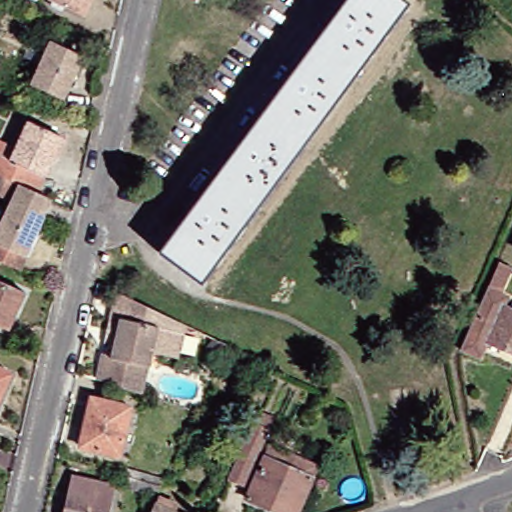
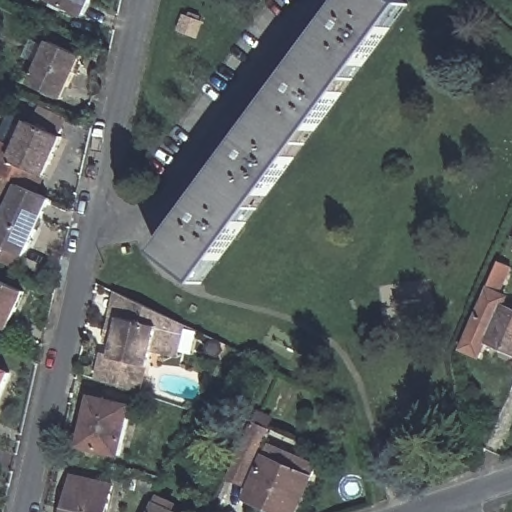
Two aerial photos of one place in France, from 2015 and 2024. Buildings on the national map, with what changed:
unchanged [(79,12),(53,0),(85,0),(79,12)]
unchanged [(186,278),(145,248),(328,0),(392,0),(186,278)]
unchanged [(68,51),(48,94),(16,80),(36,36),(68,51)]
unchanged [(53,137),(28,193),(0,180),(0,146),(6,148),(18,121),(53,137)]
unchanged [(9,270),(0,266),(0,203),(2,200),(0,199),(0,180),(28,193),(42,199),(9,270)]
unchanged [(512,237),(512,247),(509,245),(512,237)]
unchanged [(512,354),(472,336),(464,353),(443,344),(482,255),(496,261),(484,287),(492,291),(488,300),(512,311),(512,354)]
unchanged [(10,287),(0,309),(0,283),(10,287)]
unchanged [(122,386),(117,385),(81,373),(86,351),(94,353),(103,313),(96,311),(101,287),(170,320),(163,352),(138,346),(135,362),(129,388),(122,386)]
unchanged [(1,368),(0,370),(0,368),(1,368)]
unchanged [(116,406),(104,456),(64,447),(75,397),(116,406)]
unchanged [(250,501),(232,494),(257,436),(275,444),(250,501)]
unchanged [(316,492),(318,492),(309,512),(251,512),(274,460),(321,481),(316,492)]
unchanged [(51,512),(58,481),(98,490),(92,512),(51,512)]
unchanged [(139,512),(146,498),(174,512),(139,512)]

